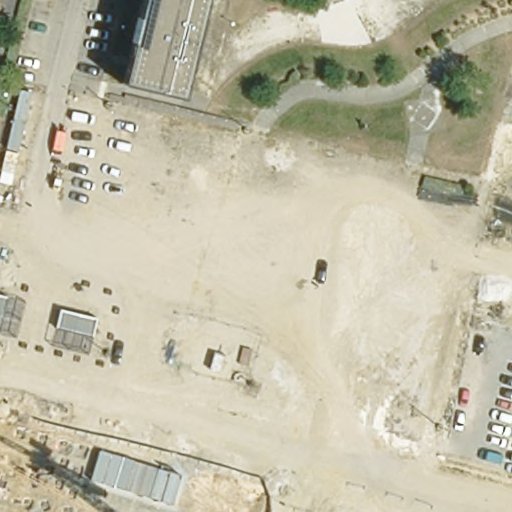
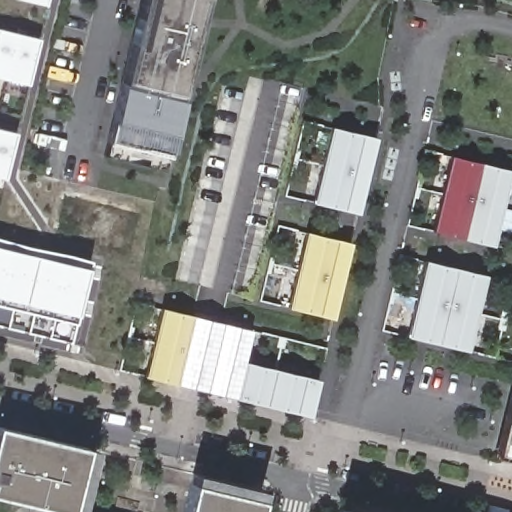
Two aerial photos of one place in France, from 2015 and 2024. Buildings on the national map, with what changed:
new [(24,0),(55,0),(54,7),(24,0)]
unchanged [(140,0),(150,0),(130,89),(120,86),(140,0)]
unchanged [(130,89),(150,0),(205,0),(182,100),(130,89)]
new [(45,41),(36,85),(0,77),(0,30),(45,41)]
new [(169,155),(109,140),(120,86),(130,89),(182,100),(169,155)]
new [(357,214),(314,203),(332,128),(377,139),(357,214)]
new [(24,136),(13,181),(0,178),(0,131),(24,136)]
new [(511,170),(492,246),(434,232),(451,156),(511,170)]
new [(332,318),(288,308),(307,232),(351,243),(332,318)]
new [(98,271),(89,329),(75,345),(0,326),(0,248),(98,271)]
new [(486,275),(467,350),(408,336),(427,261),(486,275)]
new [(145,375),(162,308),(252,330),(244,361),(234,398),(145,375)]
new [(317,380),(309,417),(234,398),(244,361),(317,380)]
new [(508,395),(512,395),(512,455),(511,459),(493,455),(508,395)]
new [(79,512),(61,512),(0,498),(0,427),(94,448),(79,512)]
new [(512,455),(512,459),(511,459),(512,455)]
new [(257,512),(184,512),(193,472),(262,488),(257,512)]
new [(341,508),(355,512),(340,512),(341,508)]

